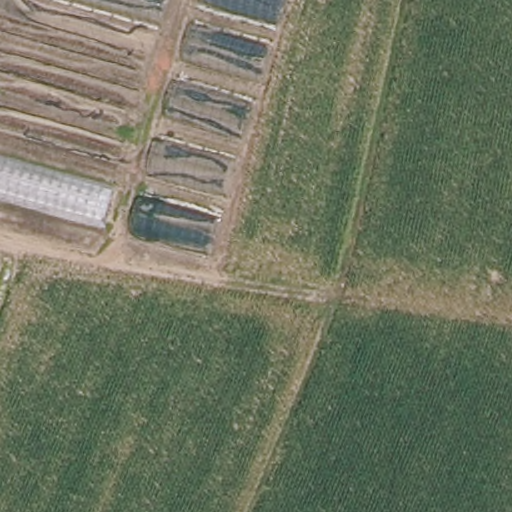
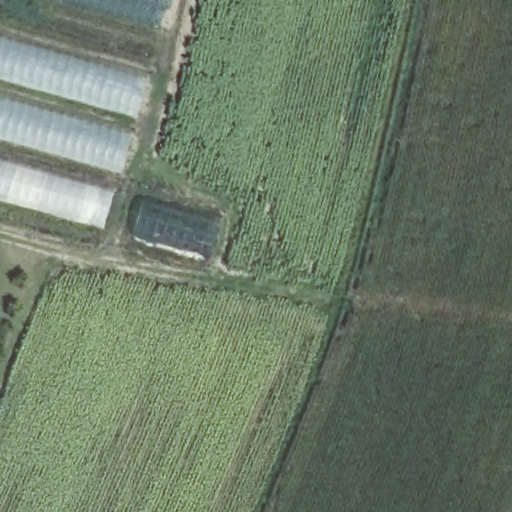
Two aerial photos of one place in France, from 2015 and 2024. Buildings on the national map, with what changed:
new [(62,0),(167,0),(160,27),(62,0)]
new [(136,118),(0,80),(0,36),(148,77),(136,118)]
new [(0,95),(132,129),(121,173),(0,140),(0,95)]
unchanged [(94,232),(0,205),(0,163),(109,194),(94,232)]

